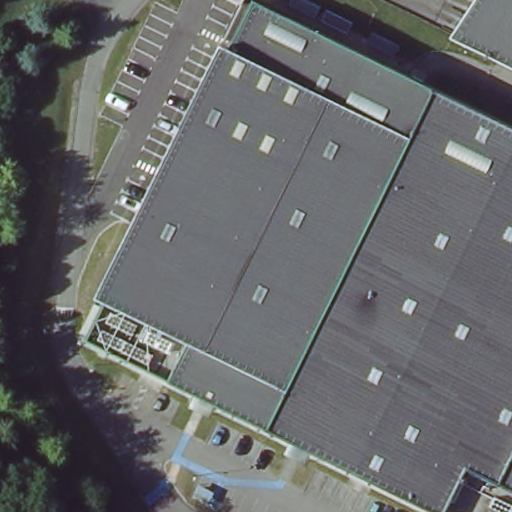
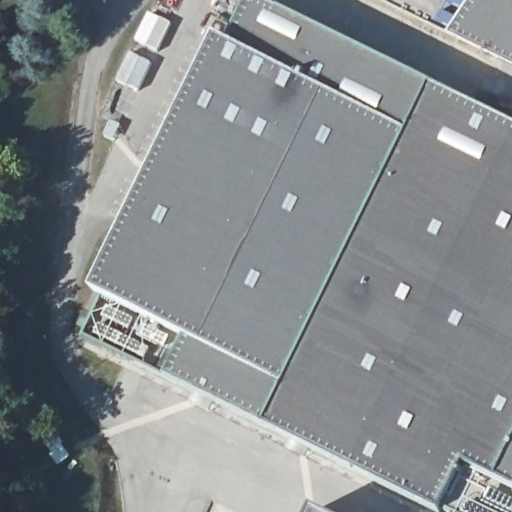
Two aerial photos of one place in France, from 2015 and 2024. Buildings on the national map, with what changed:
unchanged [(222,42),(247,0),(255,0),(512,125),(512,512),(448,512),(441,509),(80,337),(95,296),(222,42)]
unchanged [(512,0),(512,68),(452,39),(475,0),(512,0)]

